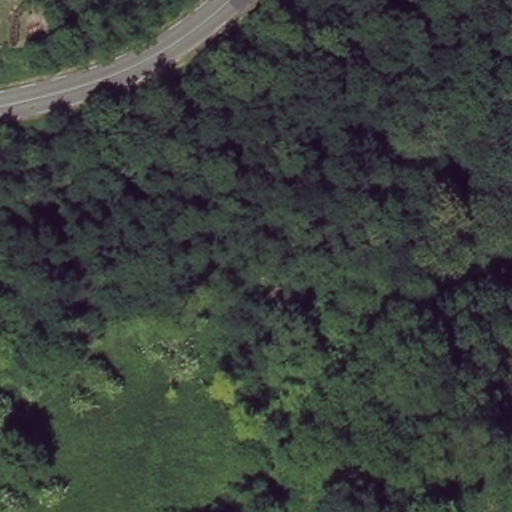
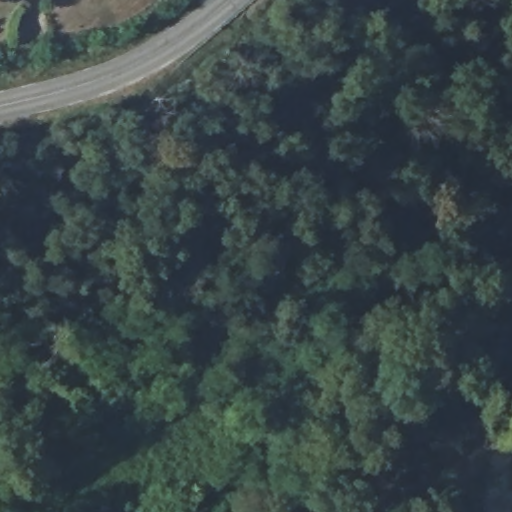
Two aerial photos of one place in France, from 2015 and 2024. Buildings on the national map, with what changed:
[]

